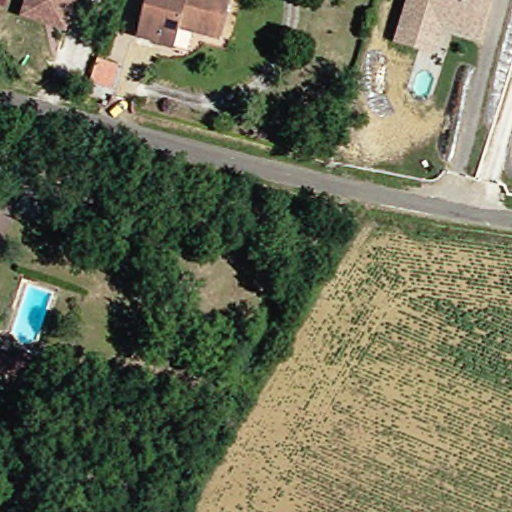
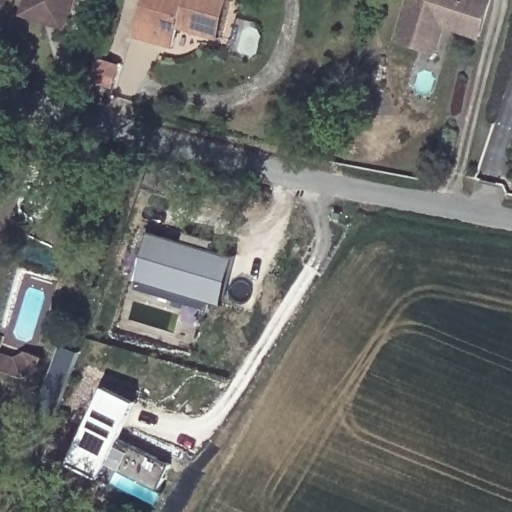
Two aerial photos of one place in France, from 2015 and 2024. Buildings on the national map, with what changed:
unchanged [(25,17),(30,2),(31,0),(78,0),(73,15),(69,30),(25,17)]
unchanged [(226,40),(212,36),(182,27),(176,46),(142,36),(153,0),(238,0),(226,40)]
unchanged [(424,47),(398,40),(410,0),(491,0),(481,34),(444,23),(436,50),(424,47)]
unchanged [(134,63),(127,85),(109,79),(115,57),(134,63)]
new [(222,310),(217,309),(207,306),(129,281),(145,230),(182,241),(185,233),(215,242),(212,251),(233,257),(238,259),(222,310)]
new [(205,313),(128,289),(130,281),(207,306),(205,313)]
new [(24,355),(40,361),(35,374),(19,381),(0,374),(0,354),(21,362),(24,355)]
new [(100,387),(133,403),(113,443),(169,471),(150,512),(60,467),(100,387)]

